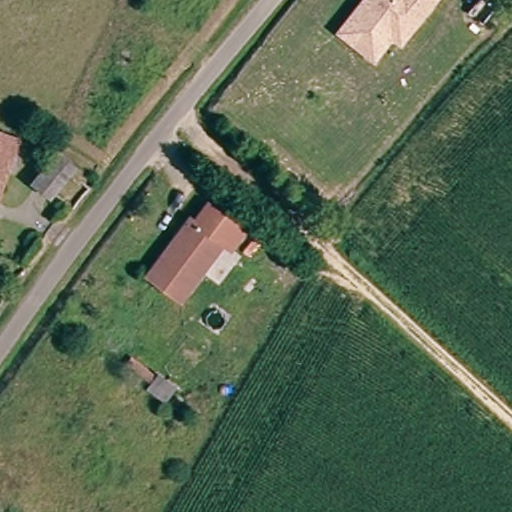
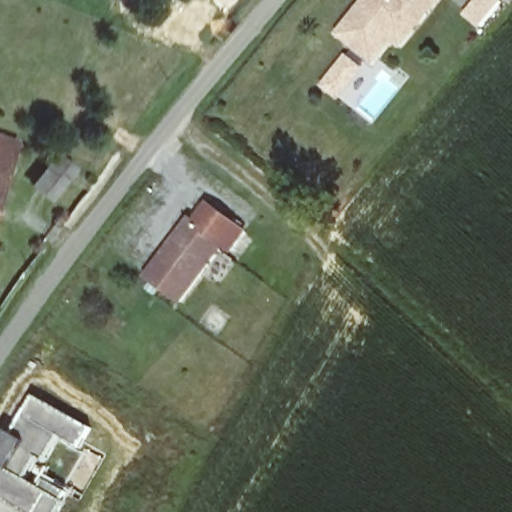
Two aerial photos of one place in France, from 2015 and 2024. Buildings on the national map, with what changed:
new [(212,0),(231,0),(222,9),(212,0)]
unchanged [(391,40),(375,62),(342,36),(371,0),(439,0),(402,47),(391,40)]
unchanged [(21,140),(0,191),(0,132),(21,140)]
unchanged [(78,168),(50,201),(31,184),(60,153),(78,168)]
unchanged [(190,216),(195,219),(207,201),(243,228),(229,247),(222,242),(180,298),(147,274),(190,216)]
new [(4,443),(36,395),(94,428),(87,442),(84,451),(61,438),(43,474),(35,486),(0,467),(0,450),(4,443)]
new [(61,438),(84,451),(64,487),(43,474),(61,438)]
new [(84,451),(87,442),(107,454),(82,498),(74,494),(64,487),(84,451)]
new [(35,486),(43,474),(64,487),(74,494),(64,512),(17,512),(0,502),(0,467),(35,486)]

